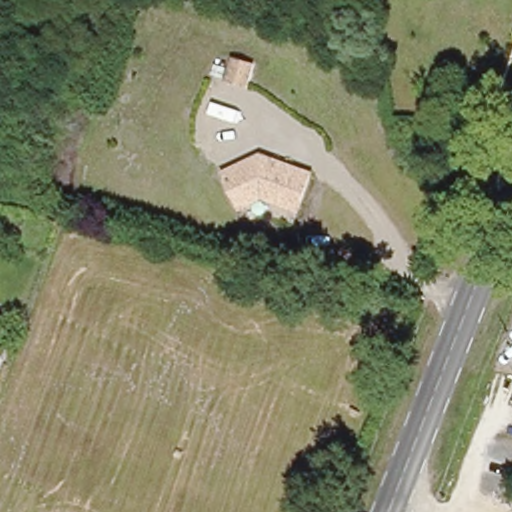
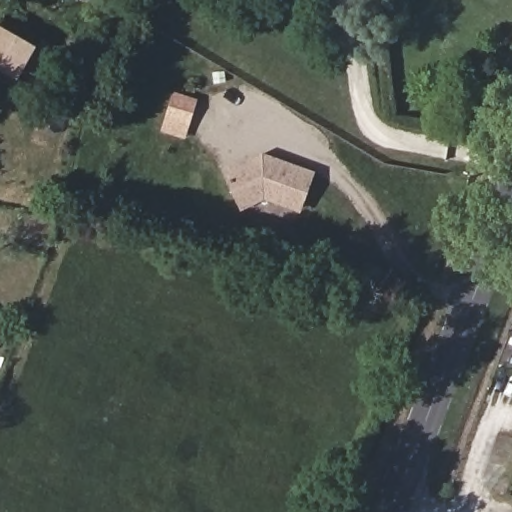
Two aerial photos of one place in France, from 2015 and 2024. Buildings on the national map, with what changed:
new [(35,48),(15,73),(0,65),(0,30),(35,48)]
demolished [(227,73),(234,57),(252,64),(244,84),(225,78),(227,73)]
new [(201,98),(187,139),(162,132),(175,91),(201,98)]
unchanged [(301,206),(267,193),(246,203),(231,168),(263,153),(273,159),(276,154),(316,170),(301,206)]

